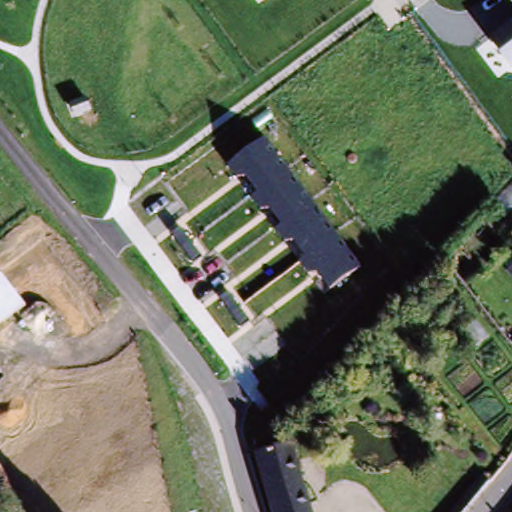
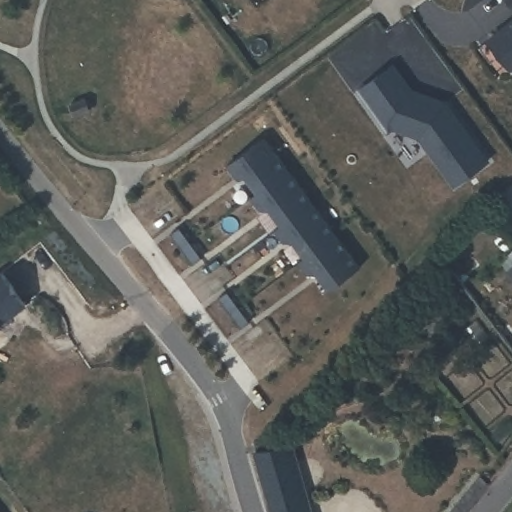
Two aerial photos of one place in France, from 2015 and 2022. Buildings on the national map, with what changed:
unchanged [(512,0),(512,1),(511,0),(512,0)]
unchanged [(490,38),(512,21),(512,69),(490,38)]
new [(418,136),(384,126),(355,88),(394,63),(412,88),(444,99),(490,160),(453,186),(418,136)]
unchanged [(331,289),(318,273),(308,273),(299,262),(307,255),(294,240),(285,240),(276,228),(281,224),(270,208),(260,209),(252,197),(258,193),(245,176),(237,177),(227,164),(265,136),(360,264),(331,289)]
unchanged [(512,256),(512,280),(500,267),(512,256)]
unchanged [(26,304),(0,323),(0,274),(2,272),(26,304)]
demolished [(57,335),(79,361),(35,399),(12,374),(57,335)]
demolished [(35,399),(0,427),(0,383),(12,374),(35,399)]
unchanged [(285,444),(305,512),(271,512),(253,453),(273,448),(285,444)]
unchanged [(466,512),(446,512),(479,473),(492,481),(466,512)]

